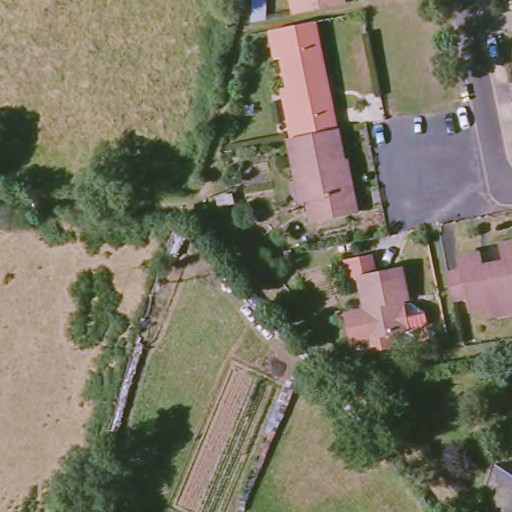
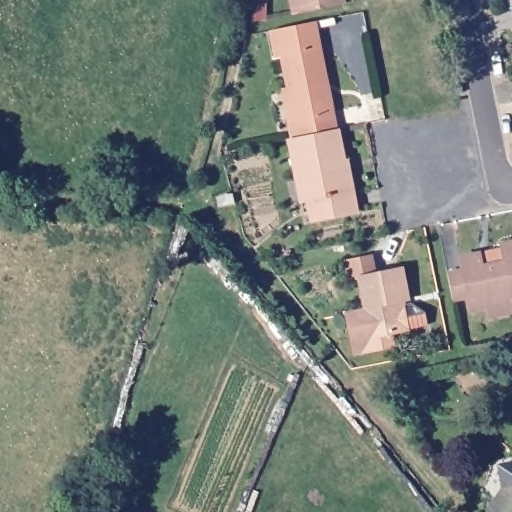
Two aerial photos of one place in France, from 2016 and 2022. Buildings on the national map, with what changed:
unchanged [(257,17),(257,0),(270,0),(270,14),(257,17)]
unchanged [(296,0),(338,0),(298,9),(296,0)]
unchanged [(297,89),(290,51),(279,53),(274,32),(317,22),(339,130),(297,139),(294,120),(289,90),(297,89)]
unchanged [(358,192),(361,191),(365,212),(324,220),(319,201),(301,206),(297,185),(305,183),(297,139),(339,130),(345,129),(358,192)]
unchanged [(231,200),(213,203),(211,190),(229,187),(231,200)]
unchanged [(489,306),(471,310),(468,297),(454,300),(448,270),(462,267),(459,252),(479,249),(482,259),(504,255),(503,239),(512,237),(512,313),(492,318),(489,306)]
unchanged [(406,334),(394,337),(396,348),(356,356),(349,316),(368,312),(361,279),(348,282),(344,265),(374,258),(378,275),(406,268),(413,300),(409,301),(416,332),(406,334)]
unchanged [(512,488),(512,512),(499,512),(512,488)]

